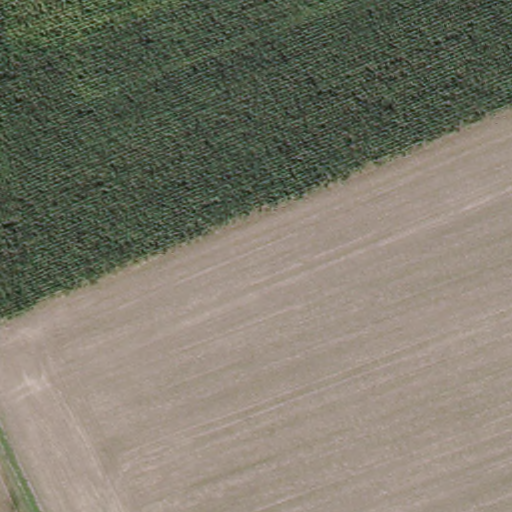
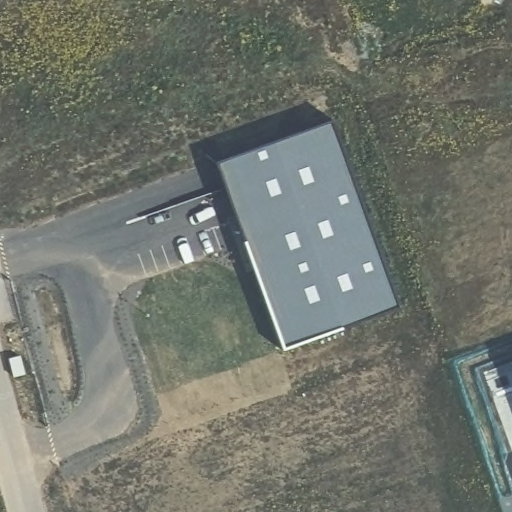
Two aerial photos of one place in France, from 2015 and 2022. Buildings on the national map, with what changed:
new [(332,119),(401,307),(282,350),(213,163),(332,119)]

